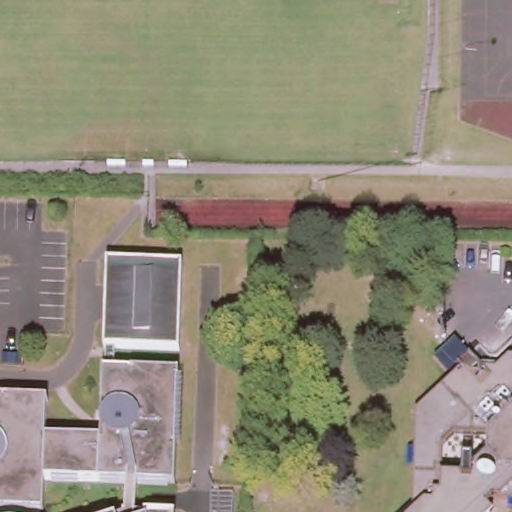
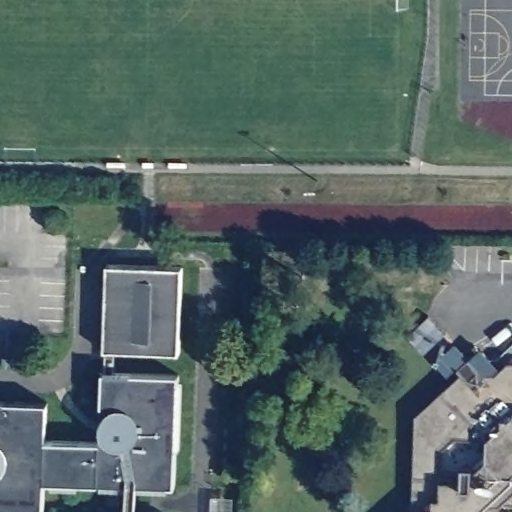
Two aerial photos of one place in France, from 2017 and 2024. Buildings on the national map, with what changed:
unchanged [(50,440),(103,441),(105,371),(107,371),(107,351),(106,351),(108,265),(184,266),(182,353),(117,351),(117,371),(182,373),(179,485),(178,512),(130,512),(130,483),(49,482),(48,512),(0,512),(0,401),(51,402),(50,440)]
unchanged [(458,367),(481,346),(491,357),(499,356),(512,344),(512,504),(492,503),(483,512),(408,512),(413,507),(416,414),(461,371),(458,367)]
unchanged [(233,490),(232,512),(210,512),(210,489),(233,490)]

